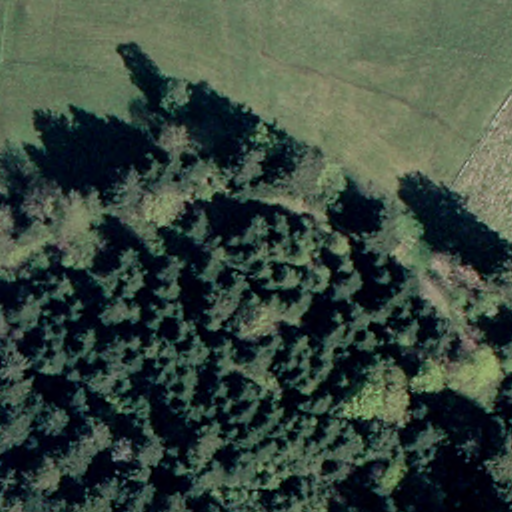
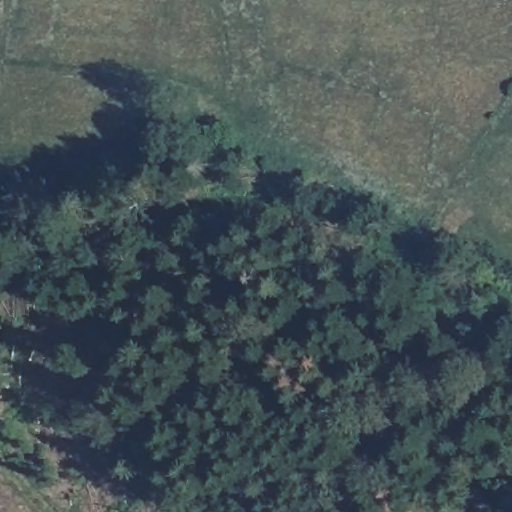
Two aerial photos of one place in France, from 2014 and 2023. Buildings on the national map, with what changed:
[]

